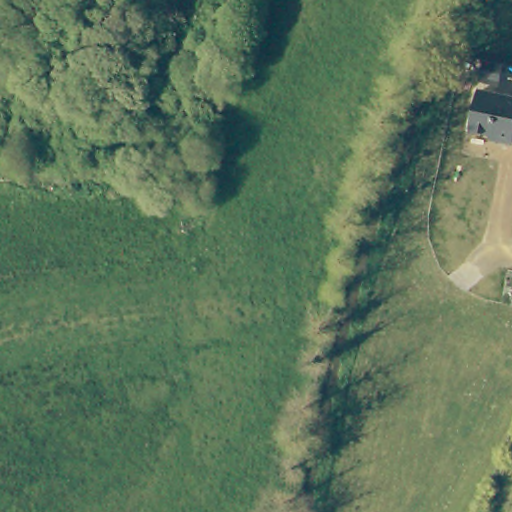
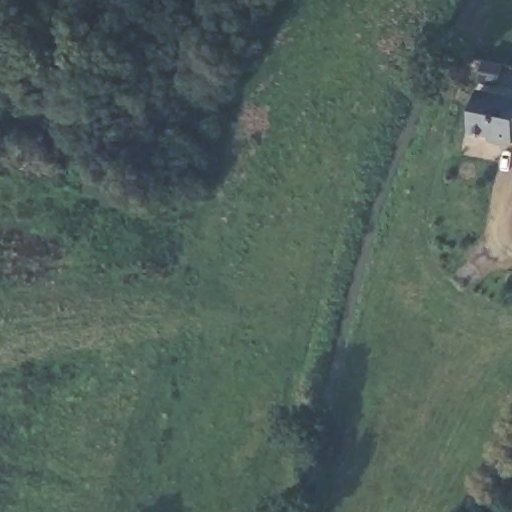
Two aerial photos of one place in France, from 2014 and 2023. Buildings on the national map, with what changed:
unchanged [(497,141),(498,136),(473,131),(481,91),(512,98),(512,144),(497,141)]

